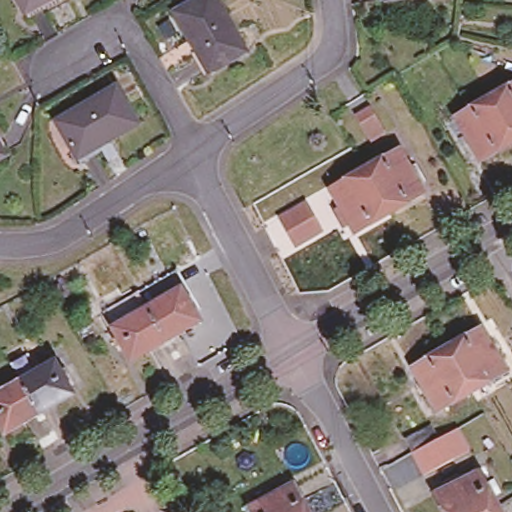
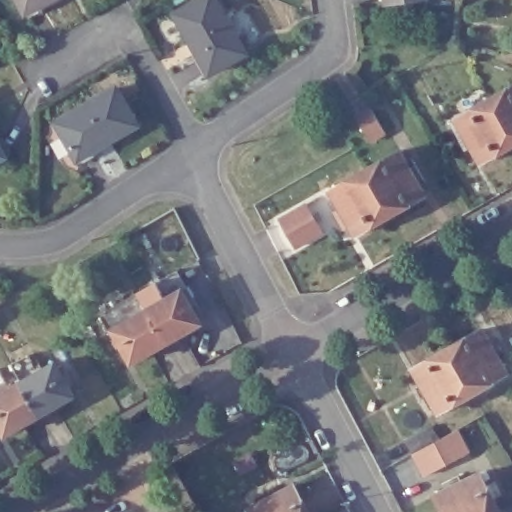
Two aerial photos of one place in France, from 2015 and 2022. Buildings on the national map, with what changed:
unchanged [(22,5),(19,0),(31,0),(22,5)]
unchanged [(179,0),(213,0),(240,45),(203,66),(168,6),(179,0)]
unchanged [(114,80),(135,118),(74,151),(53,114),(114,80)]
unchanged [(492,94),(512,82),(512,141),(482,157),(457,113),(492,94)]
unchanged [(387,129),(371,138),(358,113),(374,105),(387,129)]
unchanged [(0,151),(0,145),(2,150),(0,151)]
unchanged [(365,166),(400,147),(424,191),(390,210),(359,228),(334,184),(365,166)]
unchanged [(309,200),(324,229),(297,243),(282,214),(309,200)]
unchanged [(196,317),(162,337),(128,357),(110,325),(100,308),(135,287),(145,305),(178,285),(196,317)]
unchanged [(447,338),(479,320),(504,365),(472,383),(437,403),(411,359),(447,338)]
unchanged [(0,388),(16,378),(7,360),(23,351),(34,369),(50,360),(69,392),(35,411),(2,430),(0,428),(0,388)]
unchanged [(404,431),(428,418),(435,431),(410,445),(404,431)]
unchanged [(472,448),(424,474),(413,450),(459,427),(472,448)]
unchanged [(495,505),(499,512),(444,512),(434,492),(477,470),(495,505)]
unchanged [(305,475),(322,510),(318,512),(244,512),(242,507),(287,485),(305,475)]

